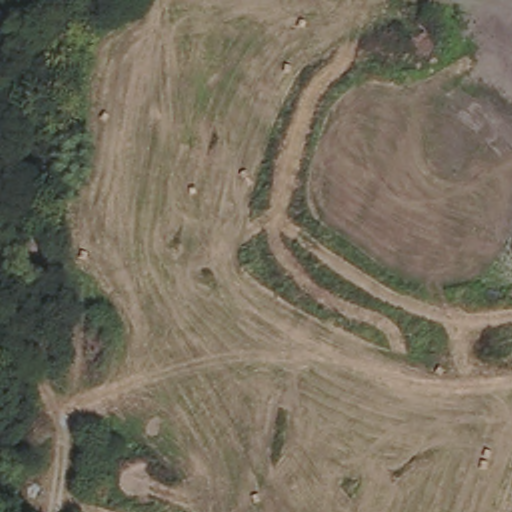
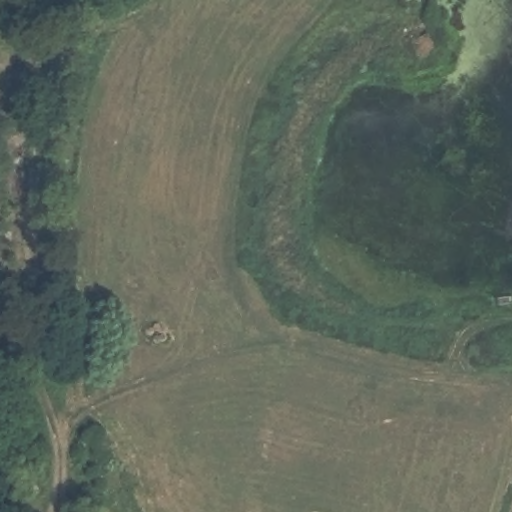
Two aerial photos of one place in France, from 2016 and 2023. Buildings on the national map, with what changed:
unchanged [(411,40),(428,31),(438,52),(423,59),(411,40)]

